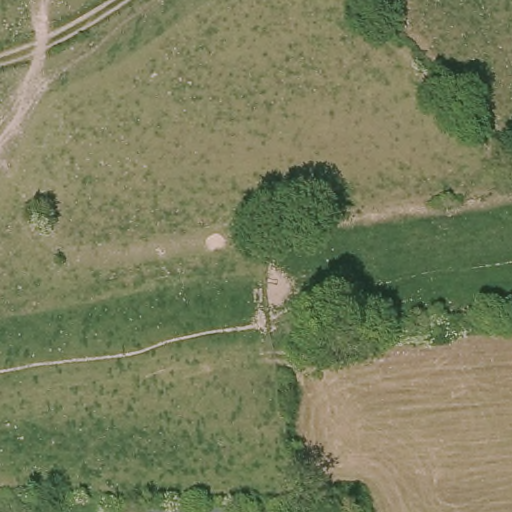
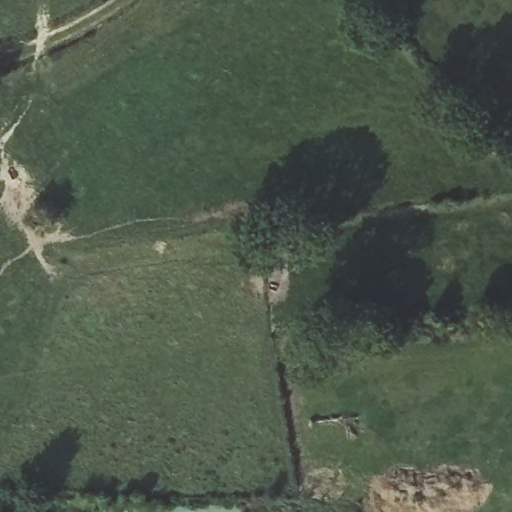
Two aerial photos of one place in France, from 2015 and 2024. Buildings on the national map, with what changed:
[]

